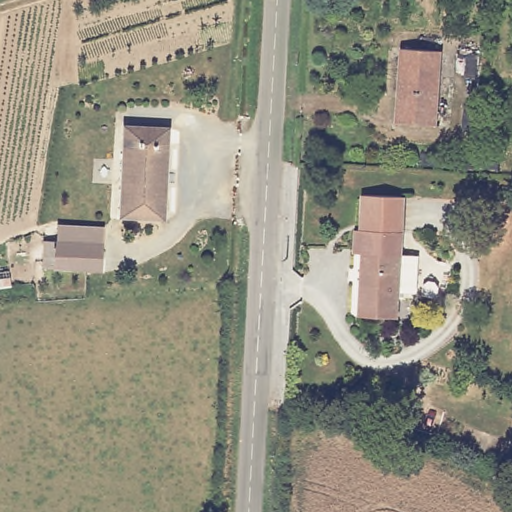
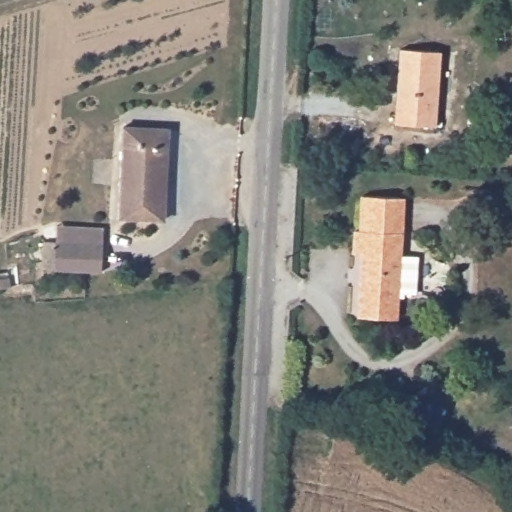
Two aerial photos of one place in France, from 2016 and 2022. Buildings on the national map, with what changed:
unchanged [(430,123),(390,120),(395,45),(436,48),(430,123)]
unchanged [(172,129),(165,222),(121,219),(127,126),(172,129)]
unchanged [(361,226),(363,191),(401,193),(399,228),(401,228),(400,252),(418,253),(416,291),(406,290),(396,300),(395,315),(357,313),(361,250),(354,249),(355,225),(361,226)]
unchanged [(36,246),(95,249),(95,270),(35,267),(36,246)]

